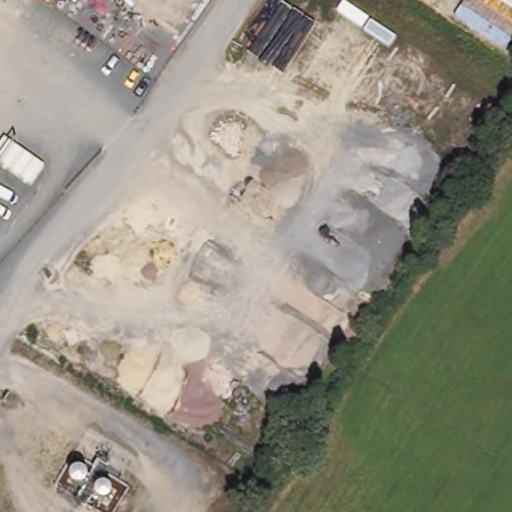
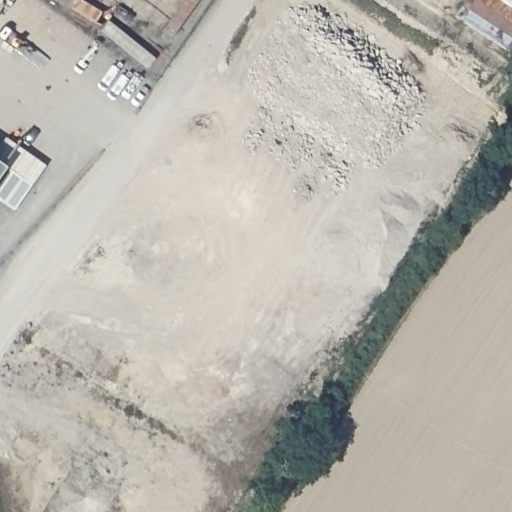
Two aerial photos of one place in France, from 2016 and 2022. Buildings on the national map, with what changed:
unchanged [(0,174),(0,170),(2,171),(0,174)]

